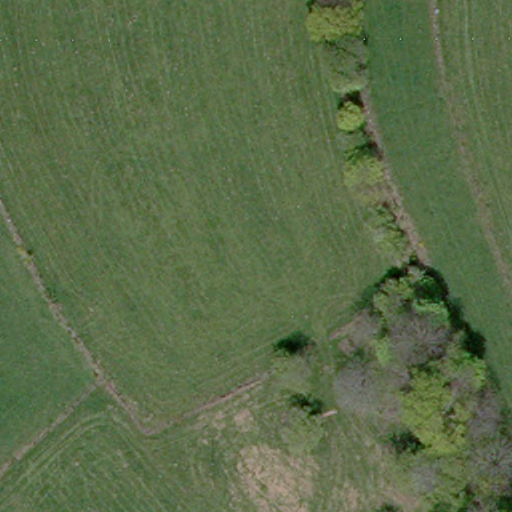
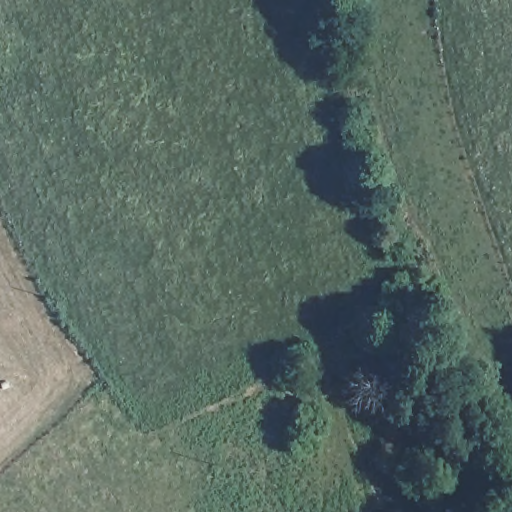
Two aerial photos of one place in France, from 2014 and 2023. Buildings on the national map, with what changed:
[]

